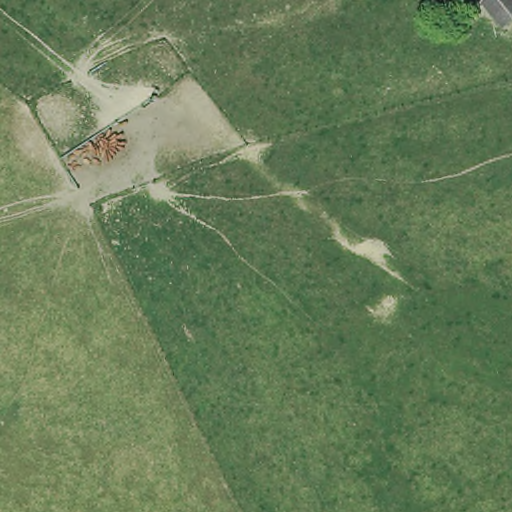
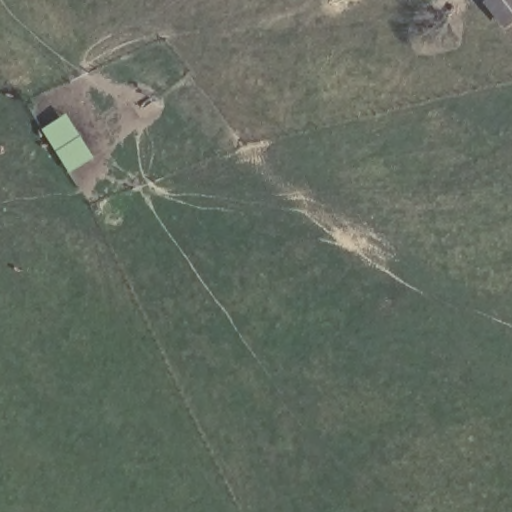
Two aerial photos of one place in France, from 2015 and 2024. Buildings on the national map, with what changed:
unchanged [(504,30),(484,3),(487,0),(512,0),(512,24),(504,30)]
new [(42,130),(67,115),(94,159),(70,174),(42,130)]

